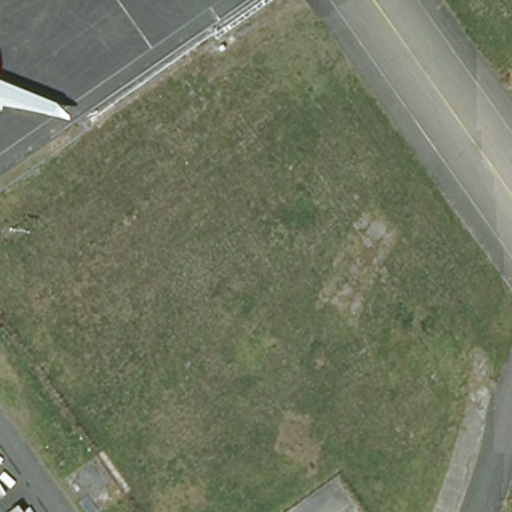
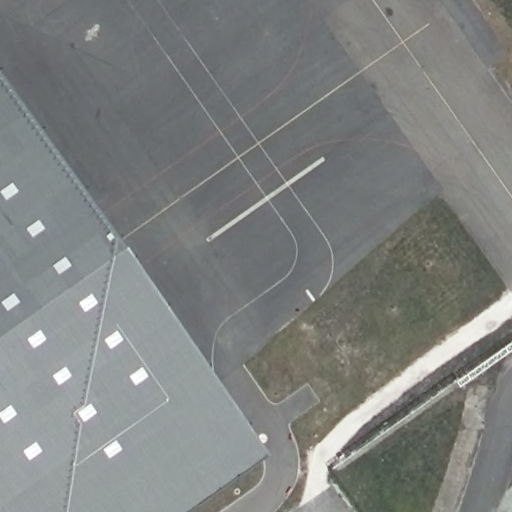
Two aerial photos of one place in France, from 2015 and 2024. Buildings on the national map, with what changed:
new [(262,454),(178,512),(0,512),(0,82),(114,245),(262,454)]

